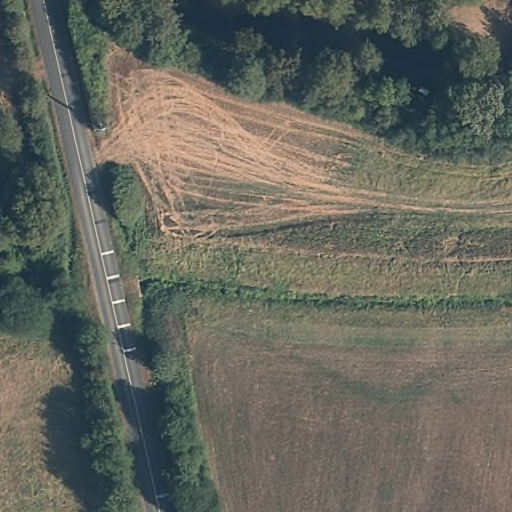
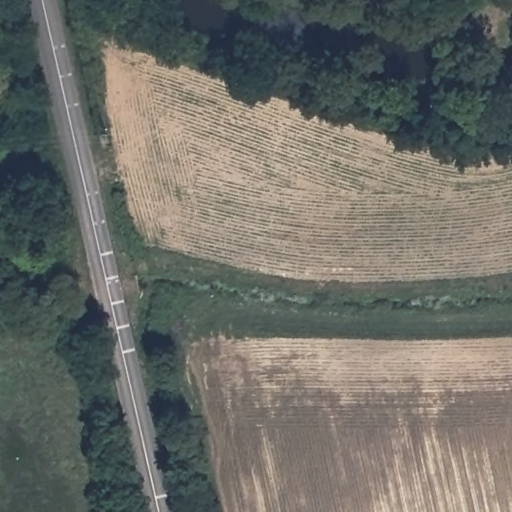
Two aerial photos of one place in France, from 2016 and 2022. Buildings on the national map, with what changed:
unchanged [(496,86),(501,94),(487,103),(482,95),(496,86)]

